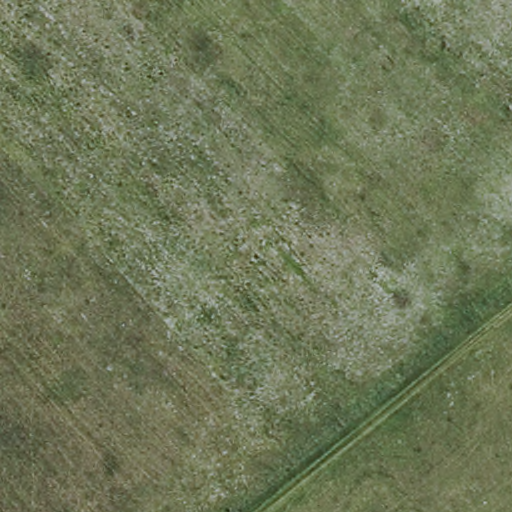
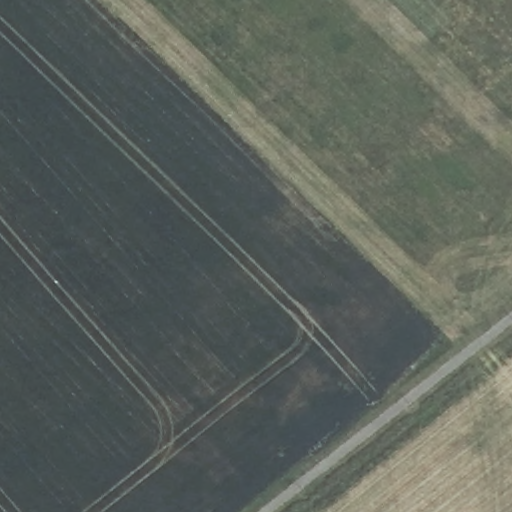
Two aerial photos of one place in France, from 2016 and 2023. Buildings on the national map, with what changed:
[]

